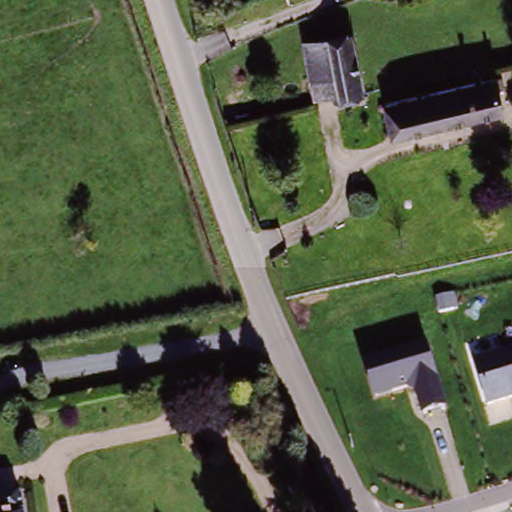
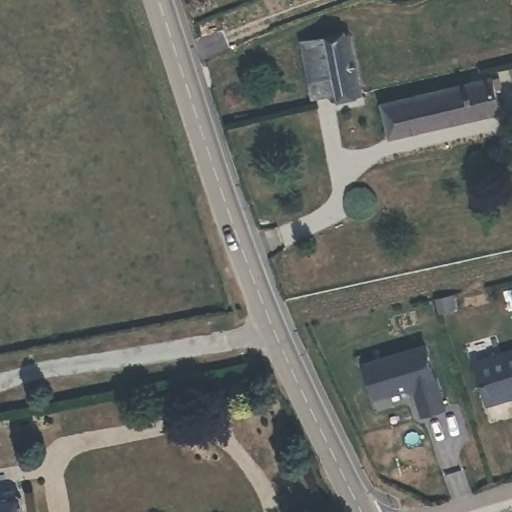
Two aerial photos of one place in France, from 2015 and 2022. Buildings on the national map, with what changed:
unchanged [(355,33),(363,94),(305,104),(297,43),(355,33)]
unchanged [(498,77),(508,111),(390,139),(380,106),(498,77)]
unchanged [(425,344),(445,412),(419,418),(412,395),(407,389),(373,400),(362,360),(425,344)]
unchanged [(512,347),(512,398),(484,407),(470,361),(512,347)]
unchanged [(22,510),(22,512),(11,512),(22,510)]

